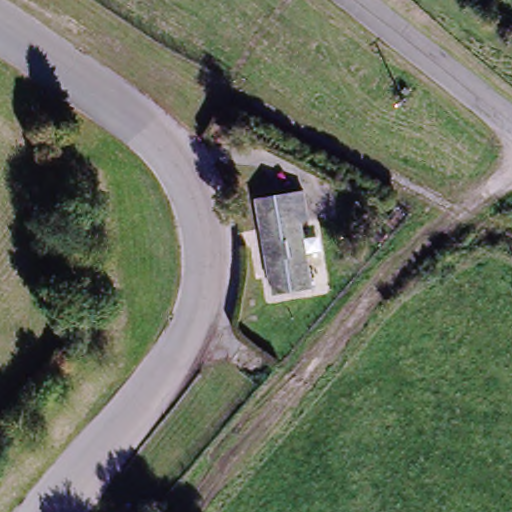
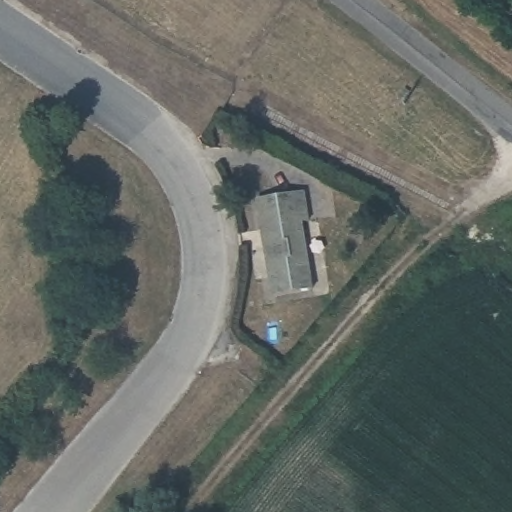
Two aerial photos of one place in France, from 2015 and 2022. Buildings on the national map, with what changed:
unchanged [(311,224),(304,226),(314,291),(275,296),(263,214),(267,214),(265,198),(306,193),(311,224)]

